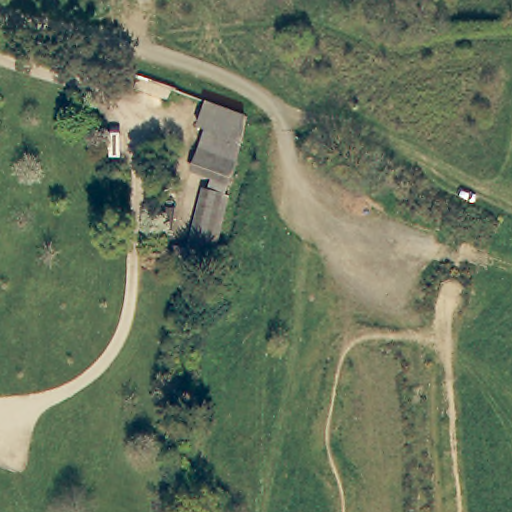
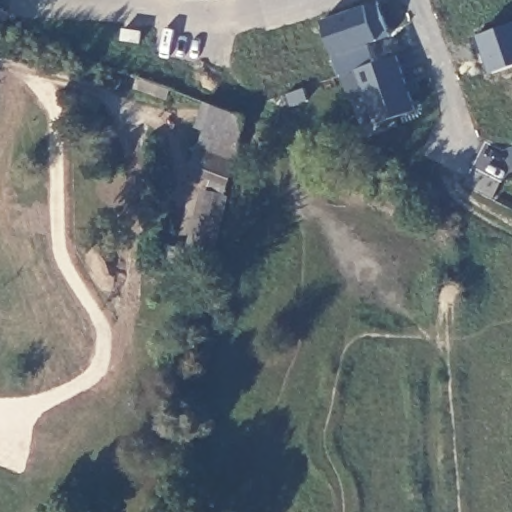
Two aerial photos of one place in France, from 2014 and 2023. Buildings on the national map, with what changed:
new [(378,3),(390,39),(368,46),(375,65),(342,77),(339,77),(332,57),(335,57),(323,22),(378,3)]
new [(375,65),(397,58),(416,113),(375,127),(366,99),(351,104),(342,77),(375,65)]
unchanged [(139,77),(171,89),(167,100),(135,89),(139,77)]
unchanged [(210,182),(186,172),(202,130),(194,127),(202,104),(243,119),(226,205),(204,201),(210,182)]
new [(512,154),(511,151),(512,151),(512,154)]
unchanged [(226,205),(213,278),(188,272),(204,201),(226,205)]

